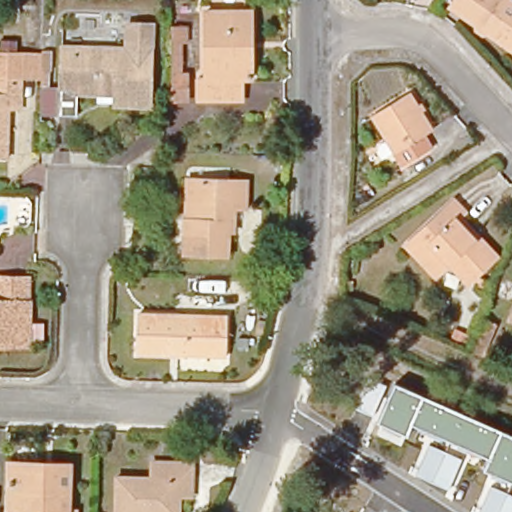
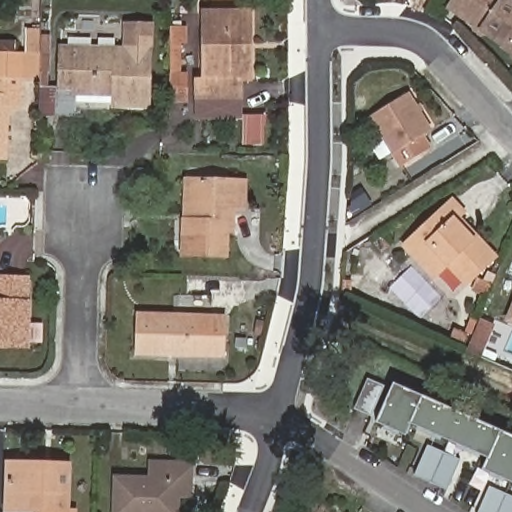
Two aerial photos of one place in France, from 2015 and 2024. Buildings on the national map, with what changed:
unchanged [(463,1),(463,0),(498,0),(512,9),(512,58),(454,18),(463,1)]
unchanged [(244,35),(245,55),(250,55),(250,80),(240,80),(240,100),(197,101),(197,79),(203,79),(203,12),(249,12),(249,35),(244,35)]
unchanged [(63,42),(133,45),(134,19),(159,20),(158,45),(156,102),(118,101),(119,99),(96,97),(96,89),(76,89),(76,110),(45,109),(45,83),(62,84),(63,42)]
unchanged [(185,102),(169,101),(170,28),(186,28),(185,42),(181,42),(180,76),(185,76),(185,102)]
unchanged [(54,47),(53,67),(45,67),(46,52),(46,47),(54,47)]
unchanged [(14,52),(13,77),(20,77),(19,109),(7,110),(6,160),(0,160),(0,52),(14,52)]
unchanged [(401,167),(370,117),(407,94),(430,131),(421,136),(430,149),(401,167)]
unchanged [(229,209),(227,257),(182,256),(183,220),(190,221),(191,179),(245,181),(244,210),(229,209)]
unchanged [(400,251),(448,207),(458,217),(452,223),(489,262),(460,289),(444,270),(428,282),(400,251)]
unchanged [(28,308),(27,350),(0,349),(0,283),(27,283),(27,308),(28,308)]
unchanged [(512,311),(509,310),(512,302),(512,311)]
unchanged [(229,357),(141,354),(142,313),(230,317),(229,357)]
unchanged [(480,320),(493,326),(480,357),(466,352),(480,320)]
unchanged [(479,458),(402,423),(397,435),(370,422),(372,418),(355,411),(368,381),(385,388),(386,385),(512,440),(512,486),(475,470),(479,458)]
unchanged [(449,490),(413,477),(427,445),(463,459),(449,490)]
unchanged [(114,512),(115,478),(150,478),(151,462),(191,464),(190,482),(178,482),(178,512),(114,512)]
unchanged [(46,476),(46,470),(68,470),(67,512),(7,512),(7,475),(46,476)]
unchanged [(512,496),(512,512),(478,512),(488,487),(512,496)]

